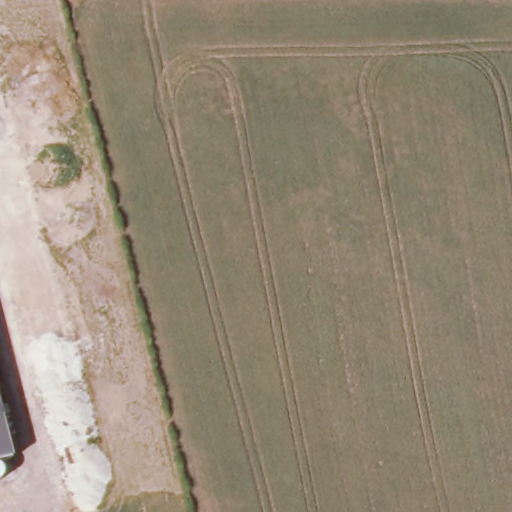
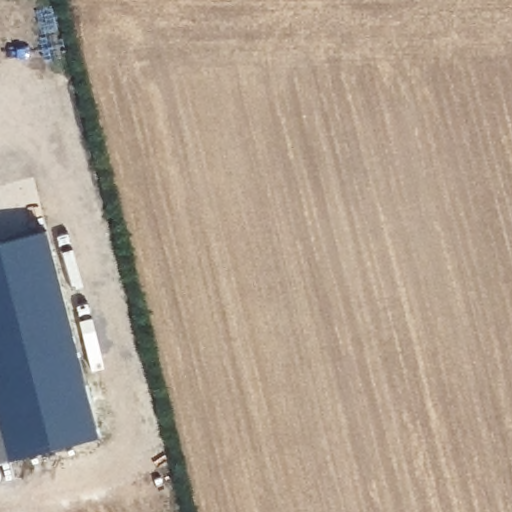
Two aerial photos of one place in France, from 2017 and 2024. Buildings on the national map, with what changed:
new [(0,412),(0,242),(49,230),(100,434),(12,457),(0,412)]
unchanged [(12,457),(0,460),(0,412),(12,457)]

